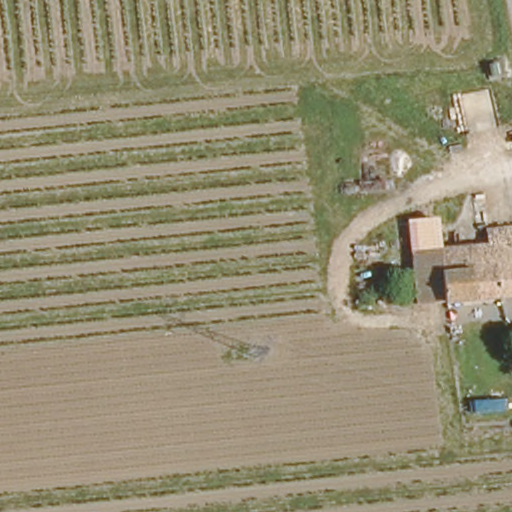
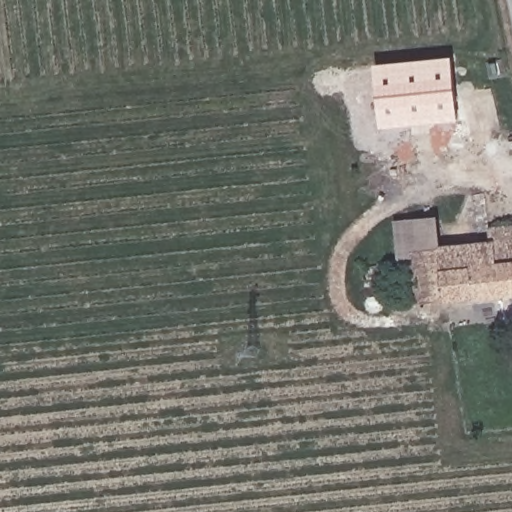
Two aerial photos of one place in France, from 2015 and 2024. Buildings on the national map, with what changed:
new [(381,130),(374,66),(453,58),(460,122),(381,130)]
new [(416,258),(417,268),(405,269),(398,269),(394,220),(439,216),(443,255),(416,258)]
unchanged [(417,298),(408,299),(408,292),(416,291),(416,282),(406,282),(405,269),(417,268),(416,258),(473,251),(473,242),(501,239),(501,228),(510,227),(512,227),(512,298),(417,307),(417,298)]

